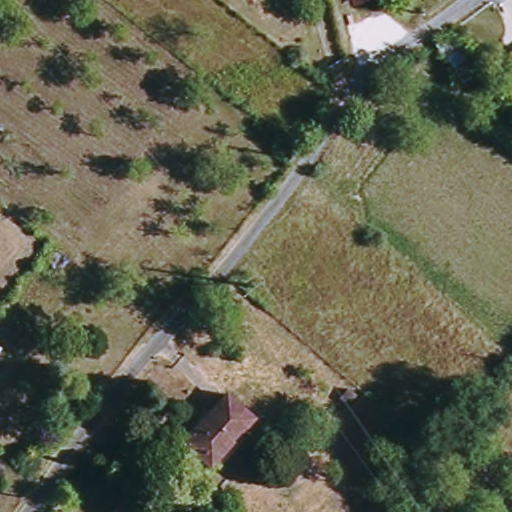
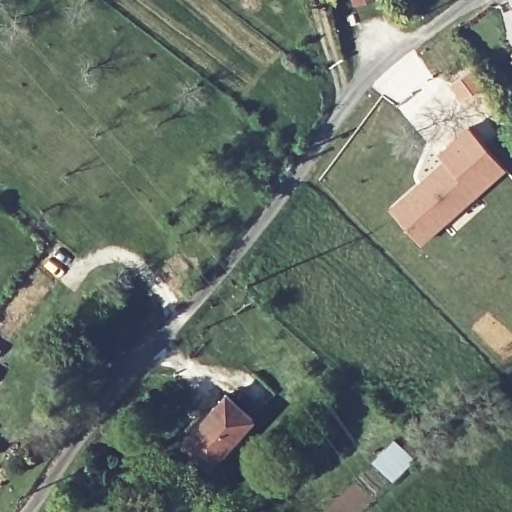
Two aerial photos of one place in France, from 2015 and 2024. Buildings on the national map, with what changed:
unchanged [(357,0),(366,0),(357,2),(357,0)]
unchanged [(436,46),(456,33),(492,87),(471,98),(436,46)]
new [(470,127),(505,169),(476,195),(485,207),(453,234),(444,222),(420,245),(390,210),(444,161),(438,154),(470,127)]
unchanged [(182,444),(223,395),(249,417),(207,466),(182,444)]

